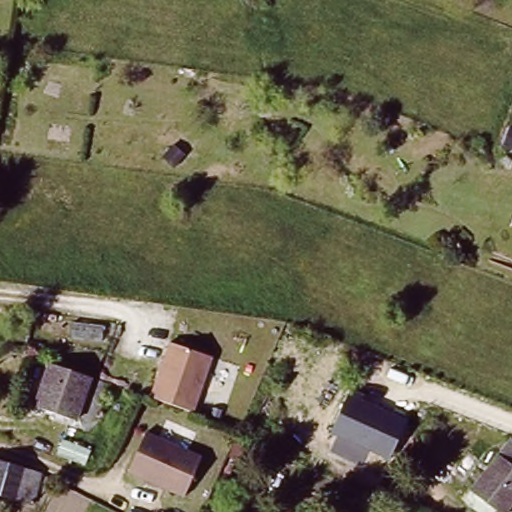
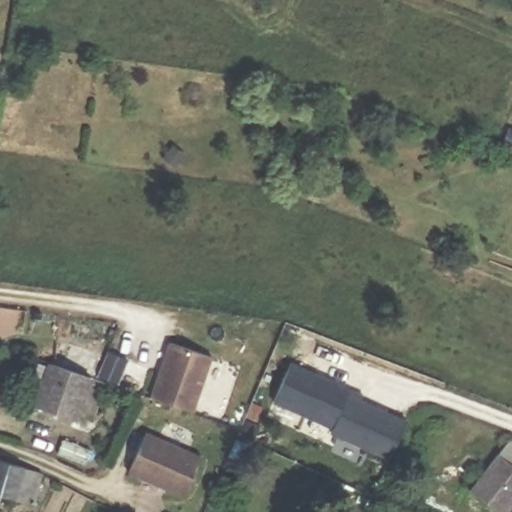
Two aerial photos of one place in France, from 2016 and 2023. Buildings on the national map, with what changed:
unchanged [(213,357),(194,413),(151,398),(168,344),(213,357)]
unchanged [(49,360),(52,361),(90,374),(75,418),(34,404),(42,382),(49,360)]
new [(273,402),(292,362),(350,390),(334,429),(273,402)]
unchanged [(350,390),(365,396),(364,401),(407,418),(391,458),(332,433),(350,390)]
unchanged [(202,456),(184,497),(127,473),(146,431),(202,456)]
unchanged [(509,509),(502,504),(495,512),(493,512),(468,493),(476,483),(512,437),(512,505),(509,509)]
unchanged [(23,469),(23,470),(41,476),(32,507),(16,503),(0,498),(0,463),(23,469)]
unchanged [(173,512),(174,511),(176,512),(173,512)]

